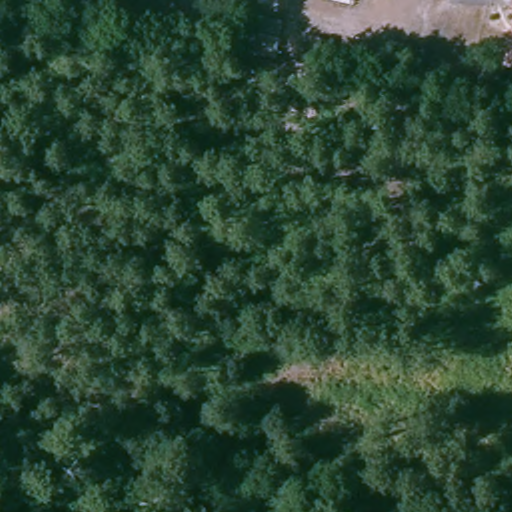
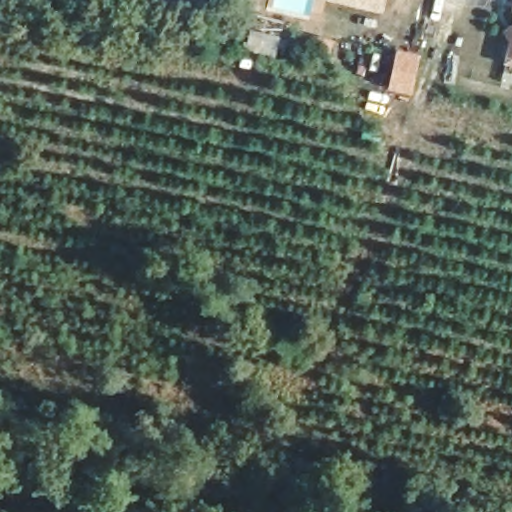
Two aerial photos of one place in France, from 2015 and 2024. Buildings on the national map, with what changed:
new [(322,0),(386,0),(383,14),(322,0)]
unchanged [(511,0),(512,0),(512,10),(509,9),(511,0)]
unchanged [(506,40),(501,31),(510,25),(512,18),(512,64),(501,61),(506,40)]
new [(420,55),(412,96),(389,91),(397,50),(420,55)]

